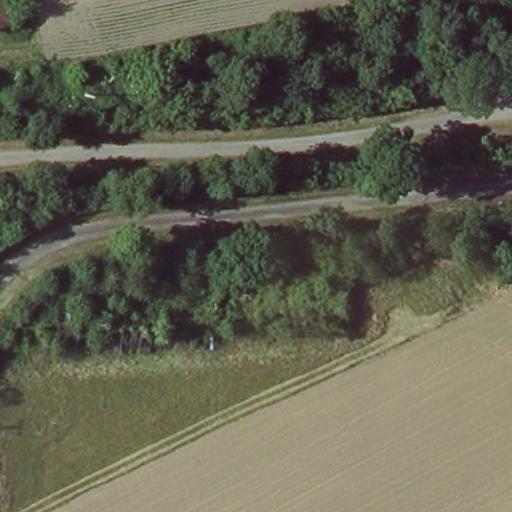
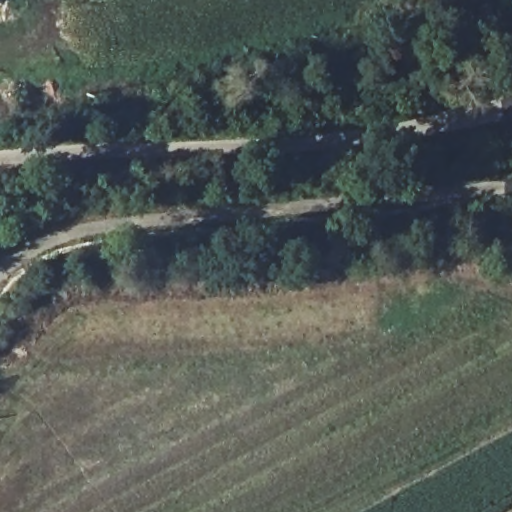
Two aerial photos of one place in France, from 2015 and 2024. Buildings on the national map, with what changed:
unchanged [(13,28),(0,33),(0,0),(6,0),(13,28)]

